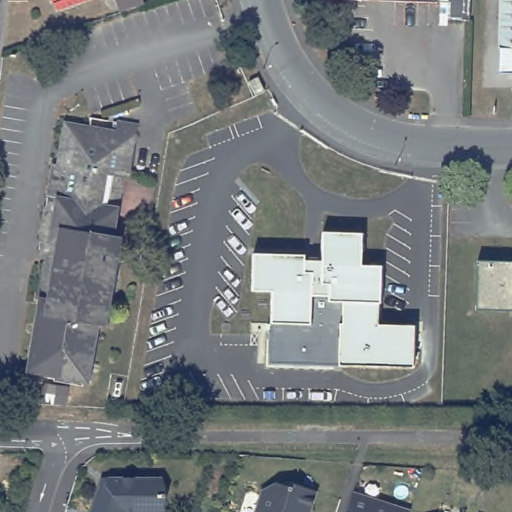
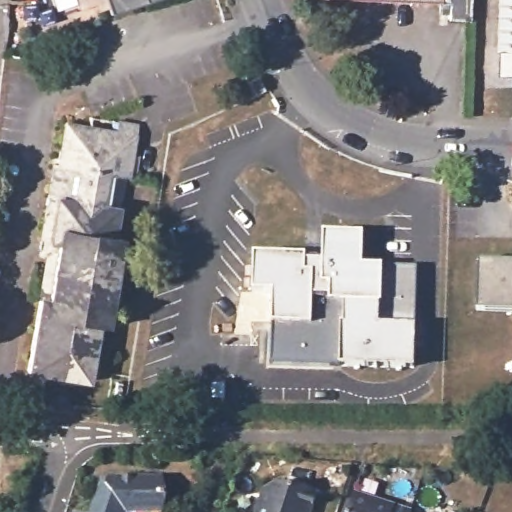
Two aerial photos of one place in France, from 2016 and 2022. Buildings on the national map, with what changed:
unchanged [(144,7),(120,14),(116,0),(141,0),(144,6),(144,7)]
unchanged [(455,9),(445,8),(445,0),(475,0),(474,14),(455,14),(455,9)]
unchanged [(504,0),(512,0),(512,57),(502,57),(504,0)]
unchanged [(512,79),(502,79),(502,57),(512,57),(512,79)]
unchanged [(41,259),(57,168),(62,169),(70,127),(97,132),(119,136),(121,127),(141,131),(131,184),(126,183),(116,241),(124,243),(108,331),(100,330),(91,385),(32,374),(44,303),(42,303),(50,260),(41,259)]
unchanged [(320,260),(323,236),(362,236),(362,267),(380,270),(378,327),(417,331),(415,369),(342,367),(345,305),(312,303),(310,328),(273,326),(275,293),(256,292),(256,258),(320,260)]
unchanged [(512,261),(512,311),(475,309),(477,259),(512,261)]
unchanged [(272,365),(273,326),(310,328),(312,303),(345,305),(342,367),(272,365)]
unchanged [(263,481),(277,474),(295,479),(296,476),(318,483),(308,512),(253,512),(263,481)]
unchanged [(162,492),(159,492),(159,504),(163,504),(161,512),(87,512),(97,485),(98,479),(112,479),(159,480),(162,492)]
unchanged [(358,489),(416,507),(414,512),(351,512),(358,489)]
unchanged [(436,508),(449,512),(428,512),(436,508)]

